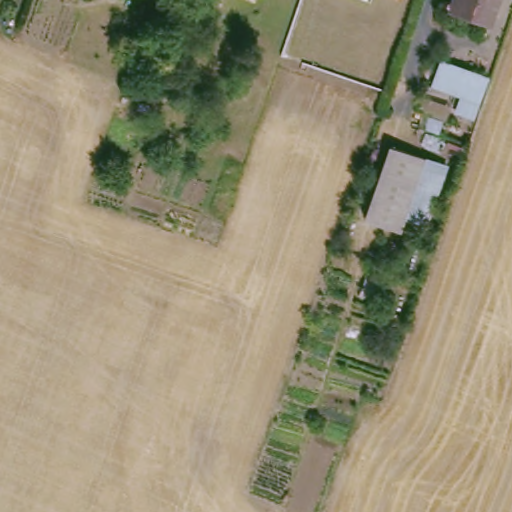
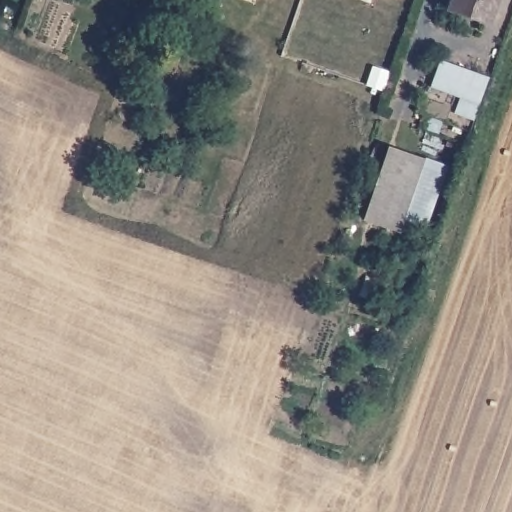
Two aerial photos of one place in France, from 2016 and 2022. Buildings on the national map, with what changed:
unchanged [(457,0),(497,0),(488,24),(452,11),(457,0)]
unchanged [(473,119),(454,110),(459,95),(429,84),(438,58),(488,76),(473,119)]
unchanged [(426,157),(448,163),(447,175),(429,230),(400,222),(398,235),(360,220),(389,145),(426,157)]

